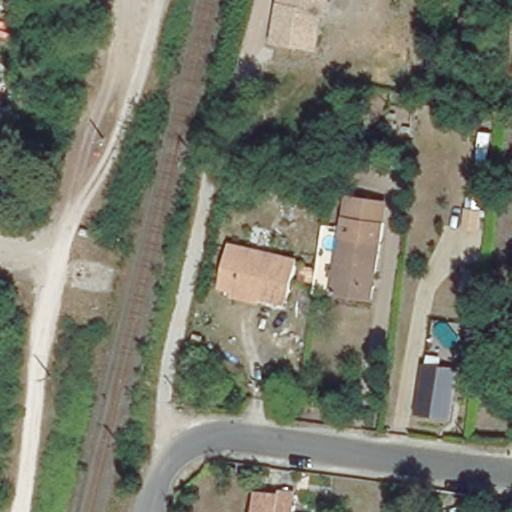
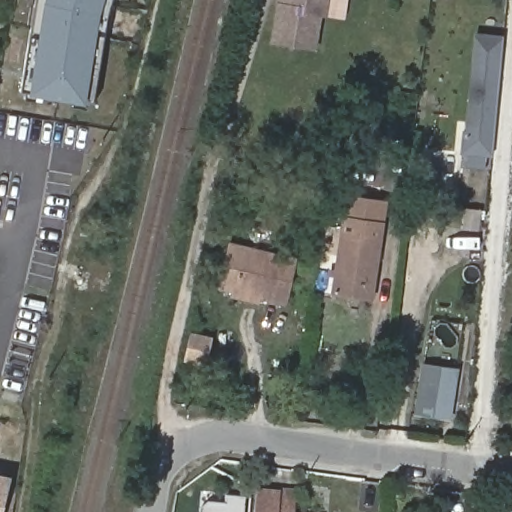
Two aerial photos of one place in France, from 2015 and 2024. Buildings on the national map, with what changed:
new [(35,6),(36,0),(111,0),(109,7),(94,102),(86,101),(32,90),(23,89),(35,6)]
unchanged [(278,0),(331,0),(328,18),(324,17),(316,51),(270,44),(278,0)]
unchanged [(511,36),(512,29),(512,36),(511,36)]
new [(474,31),(502,34),(502,38),(490,157),(459,154),(461,129),(465,129),(473,35),(474,31)]
unchanged [(335,291),(348,198),(380,203),(376,223),(382,224),(371,297),(335,291)]
unchanged [(224,297),(225,290),(210,286),(219,247),(285,261),(277,300),(249,294),(247,302),(224,297)]
unchanged [(454,374),(450,424),(417,420),(422,371),(454,374)]
new [(0,512),(0,474),(9,476),(1,512),(0,512)]
unchanged [(270,482),(275,483),(276,480),(292,482),(290,508),(316,511),(316,512),(251,512),(254,481),(270,482)]
new [(201,512),(201,509),(225,511),(226,499),(246,501),(245,512),(201,512)]

